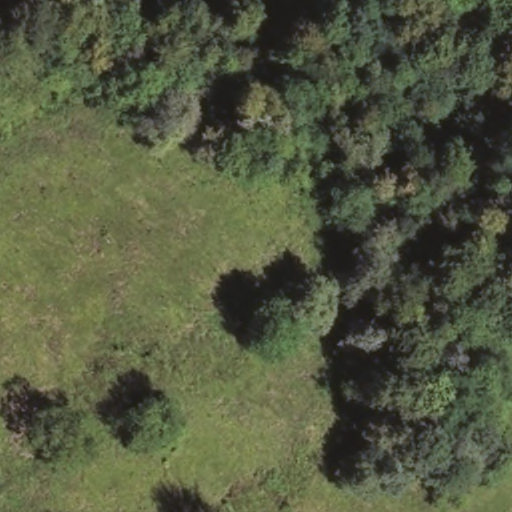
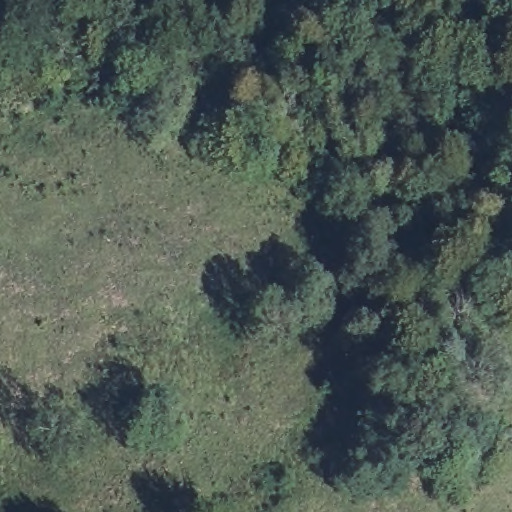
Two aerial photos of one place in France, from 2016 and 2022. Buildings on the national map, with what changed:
[]

